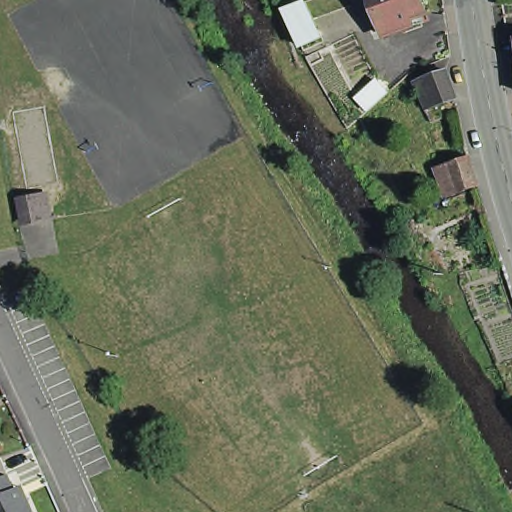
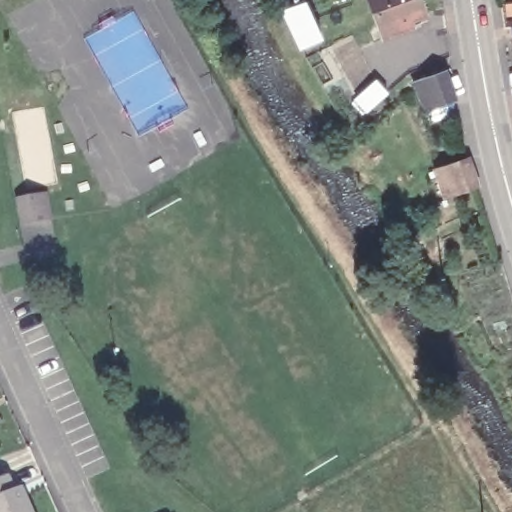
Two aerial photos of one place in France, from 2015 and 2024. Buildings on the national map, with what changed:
unchanged [(301,0),(304,0),(309,18),(314,31),(297,38),(294,39),(287,18),(284,6),(301,0)]
unchanged [(412,0),(418,17),(402,22),(404,30),(377,39),(364,0),(412,0)]
unchanged [(512,40),(512,73),(509,41),(512,40)]
unchanged [(413,87),(444,74),(454,101),(424,112),(413,87)]
unchanged [(386,91),(365,109),(354,96),(374,78),(386,91)]
unchanged [(428,172),(449,165),(459,194),(439,202),(428,172)]
unchanged [(20,196),(41,191),(48,190),(52,214),(45,215),(24,219),(20,196)]
unchanged [(5,478),(11,492),(39,482),(43,490),(52,512),(0,512),(0,480),(5,478)]

